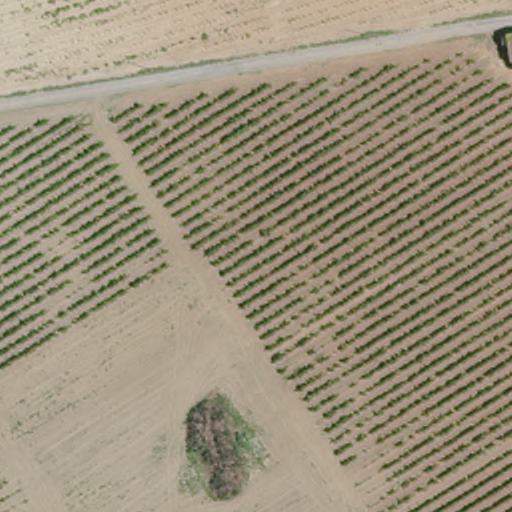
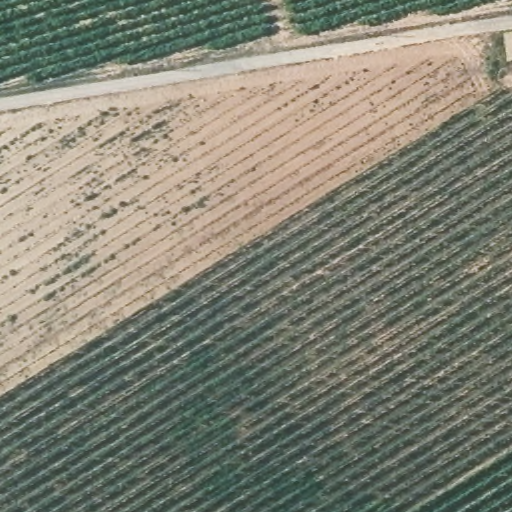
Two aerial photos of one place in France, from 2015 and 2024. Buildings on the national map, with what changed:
unchanged [(512,37),(512,58),(509,59),(506,37),(512,37)]

